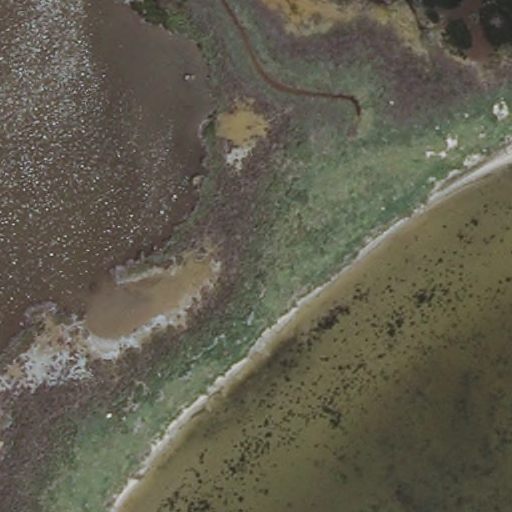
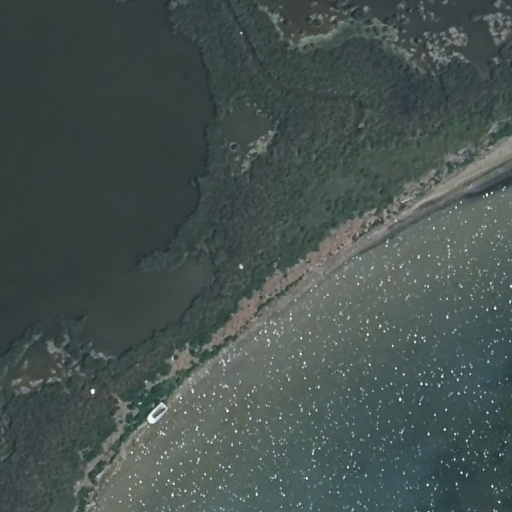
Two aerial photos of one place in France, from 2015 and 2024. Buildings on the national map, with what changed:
[]

